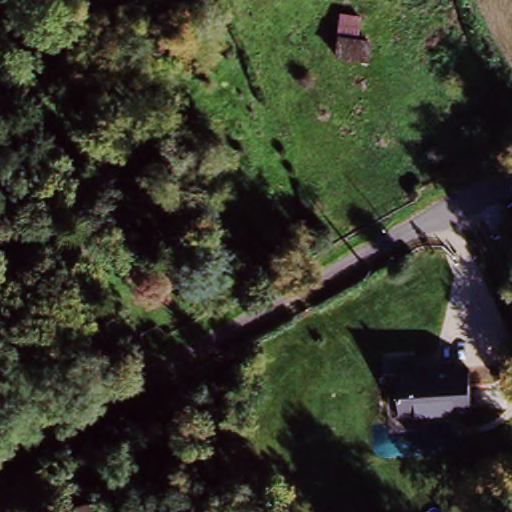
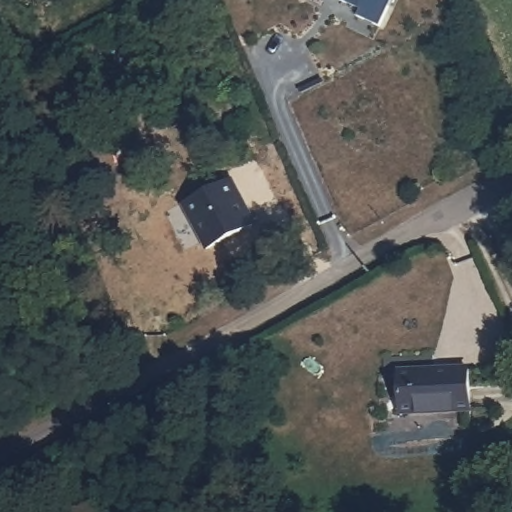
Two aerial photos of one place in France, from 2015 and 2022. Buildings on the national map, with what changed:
new [(378,26),(356,16),(360,9),(341,0),(391,0),(378,26)]
new [(255,224),(206,249),(183,205),(232,180),(255,224)]
unchanged [(462,373),(467,407),(398,416),(393,382),(462,373)]
unchanged [(90,508),(90,512),(68,512),(68,508),(90,508)]

